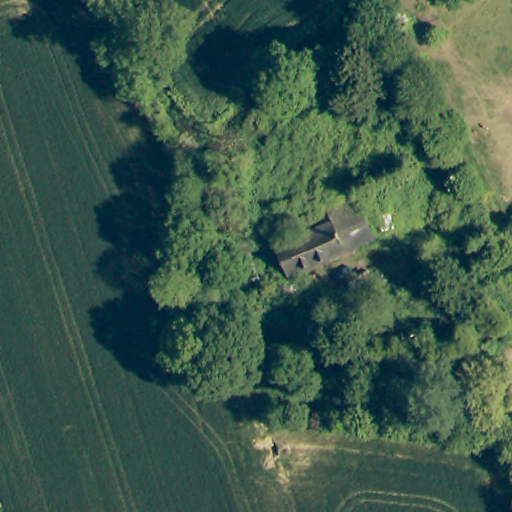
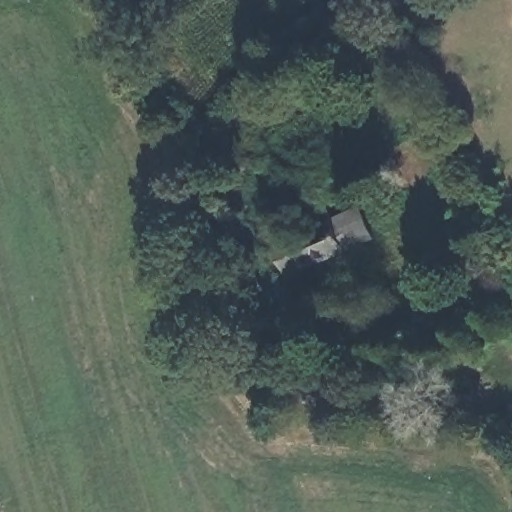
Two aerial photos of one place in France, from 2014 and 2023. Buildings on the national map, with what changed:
unchanged [(380,235),(294,273),(280,241),(367,205),(380,235)]

